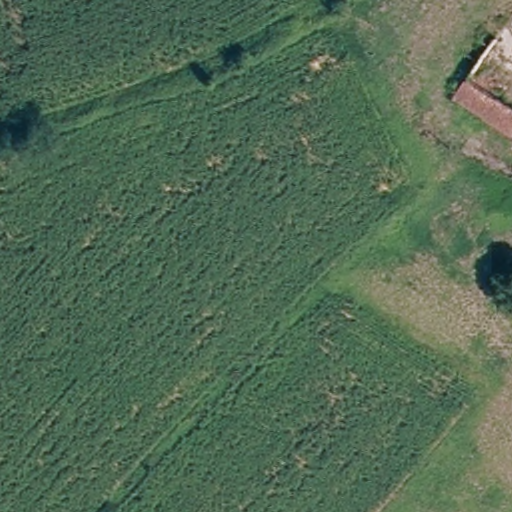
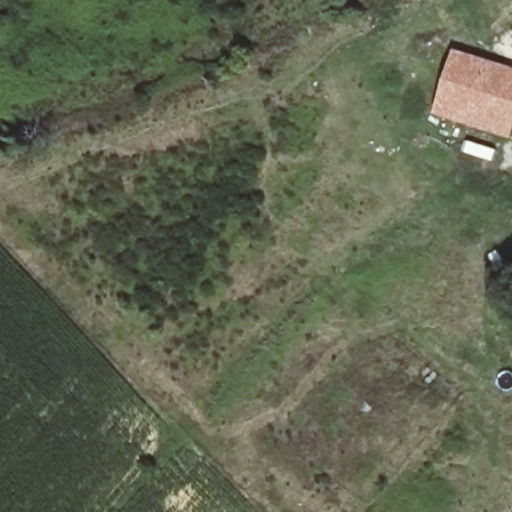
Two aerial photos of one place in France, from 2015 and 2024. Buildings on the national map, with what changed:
demolished [(511,128),(512,129),(512,141),(508,149),(474,131),(483,112),(455,99),(505,11),(512,15),(512,126),(511,128)]
new [(452,48),(512,66),(512,137),(512,139),(434,115),(452,48)]

